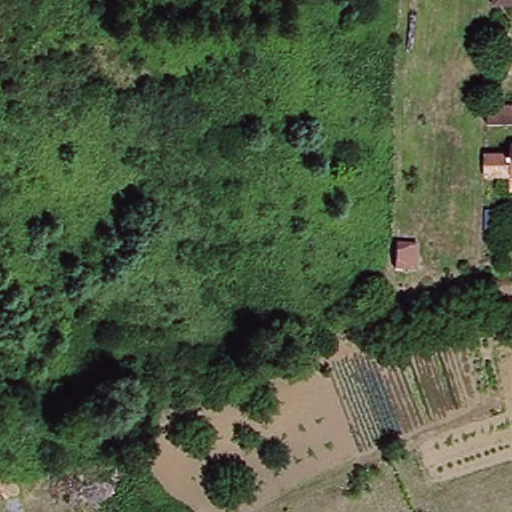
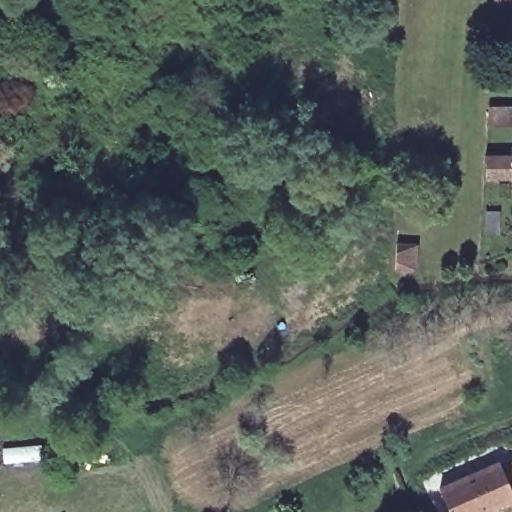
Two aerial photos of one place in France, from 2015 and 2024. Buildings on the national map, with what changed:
unchanged [(498,3),(498,0),(512,0),(512,3),(498,3)]
unchanged [(495,135),(495,116),(512,116),(512,133),(495,135)]
unchanged [(492,179),(490,154),(512,153),(512,177),(492,179)]
unchanged [(405,280),(406,255),(427,256),(426,280),(405,280)]
new [(502,463),(512,488),(512,502),(489,512),(448,512),(437,487),(499,458),(502,463)]
new [(512,459),(512,488),(502,463),(512,459)]

